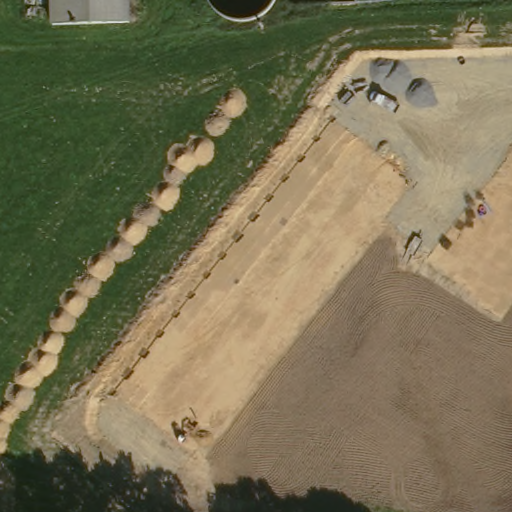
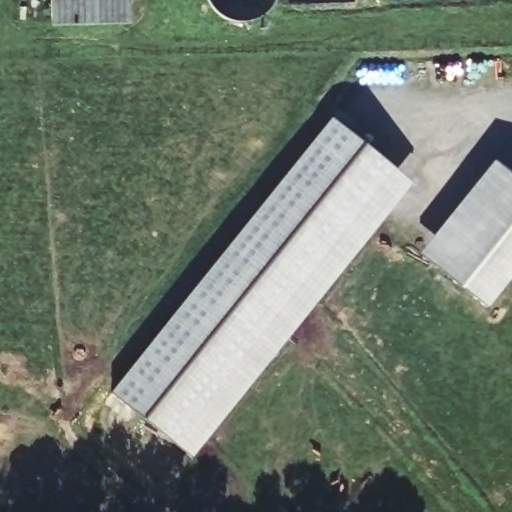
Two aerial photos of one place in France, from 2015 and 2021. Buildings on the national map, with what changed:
unchanged [(56,27),(55,0),(132,0),(133,23),(56,27)]
unchanged [(220,20),(213,13),(209,5),(208,0),(282,0),(278,9),(273,17),(265,23),(256,27),(247,29),(237,28),(228,25),(220,20)]
new [(412,183),(191,456),(111,391),(332,117),(412,183)]
new [(512,169),(512,281),(491,307),(415,250),(491,153),(512,169)]

